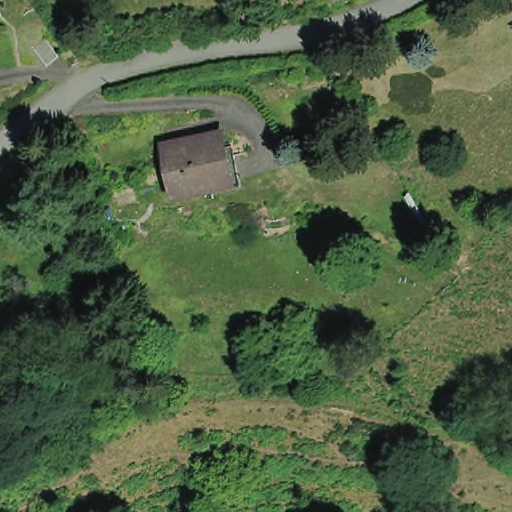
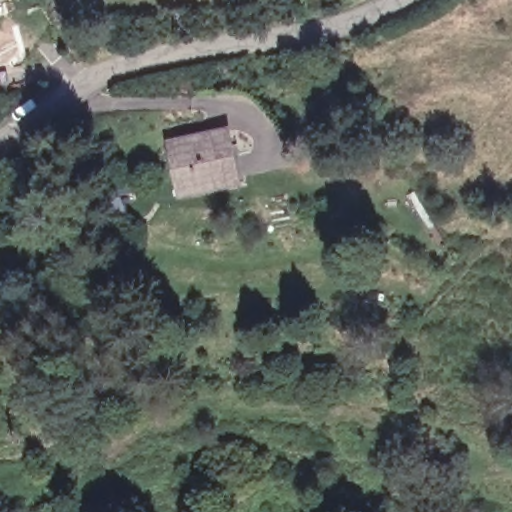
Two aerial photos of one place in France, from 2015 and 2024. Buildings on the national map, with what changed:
unchanged [(27,39),(37,29),(58,49),(48,60),(27,39)]
unchanged [(200,185),(201,189),(180,194),(168,143),(223,130),(235,177),(200,185)]

